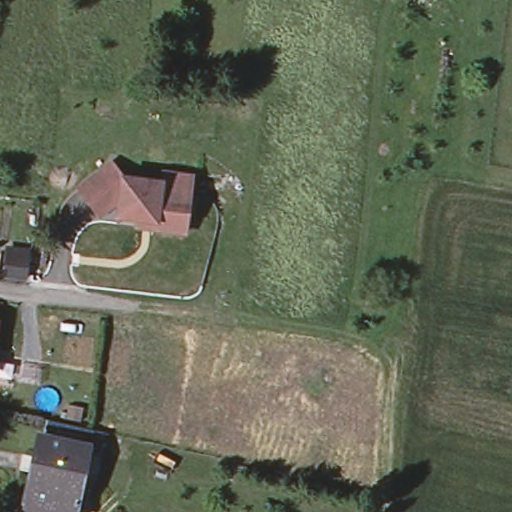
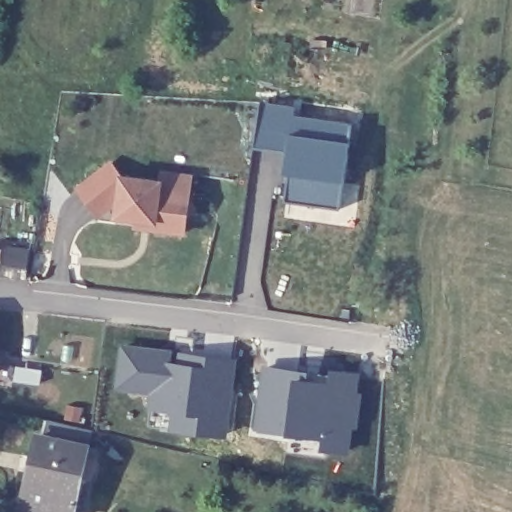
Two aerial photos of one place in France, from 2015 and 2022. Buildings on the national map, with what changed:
new [(260,106),(294,111),(292,121),(350,129),(339,213),(284,205),(288,176),(303,178),(306,158),(253,151),(260,106)]
unchanged [(115,212),(115,209),(116,195),(100,207),(97,210),(94,206),(77,184),(110,159),(121,170),(159,175),(160,166),(189,169),(187,188),(185,190),(192,197),(190,208),(184,212),(183,220),(182,228),(153,224),(135,222),(136,215),(115,212)]
new [(171,429),(173,412),(148,408),(150,392),(117,387),(122,342),(237,357),(228,437),(171,429)]
new [(263,363),(310,367),(309,379),(329,381),(330,368),(360,371),(353,452),(320,449),(322,438),(289,432),(257,430),(263,363)]
unchanged [(40,441),(42,426),(88,435),(88,436),(85,452),(75,490),(28,478),(37,441),(40,441)]
unchanged [(75,490),(75,491),(71,512),(21,512),(28,478),(75,490)]

